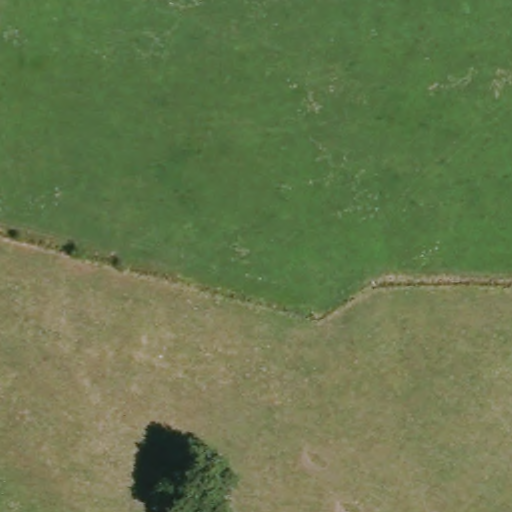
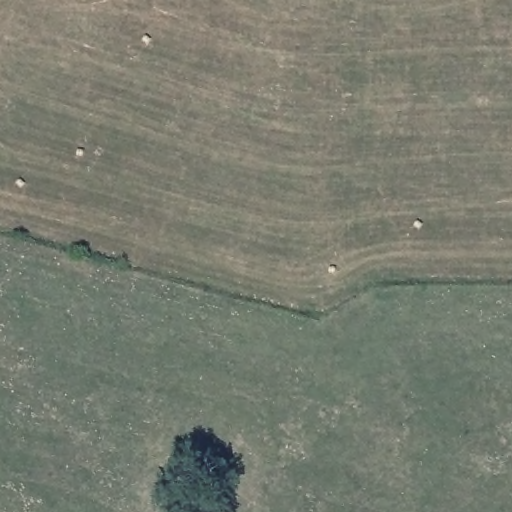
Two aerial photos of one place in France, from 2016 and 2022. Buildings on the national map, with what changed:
[]

